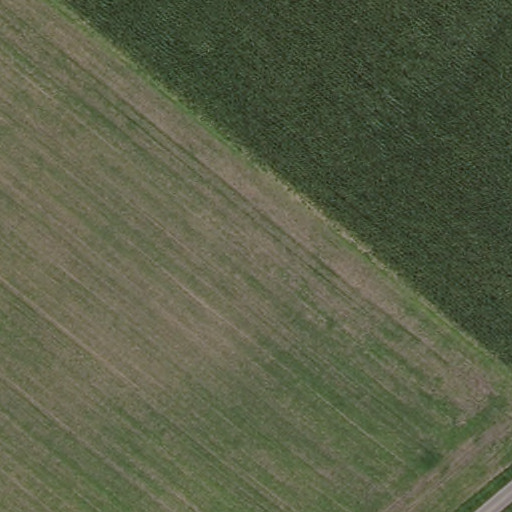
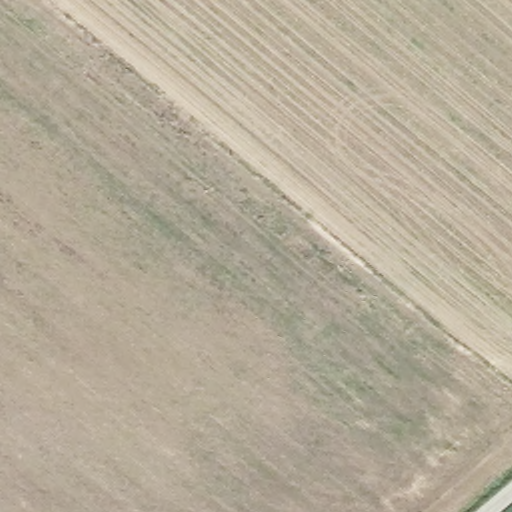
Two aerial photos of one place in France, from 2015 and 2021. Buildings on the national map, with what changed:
[]

